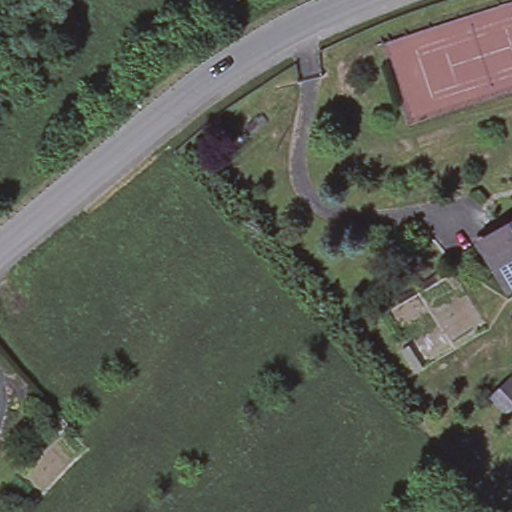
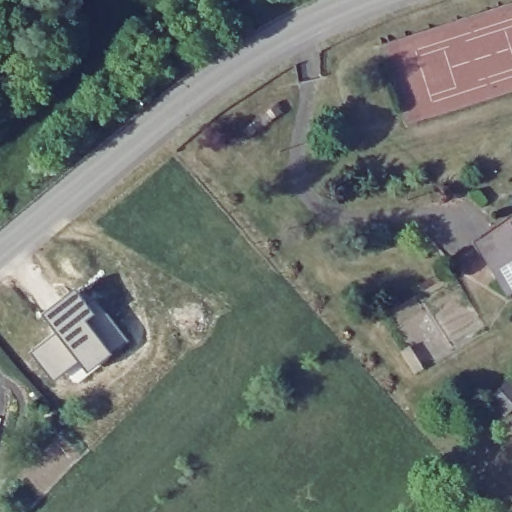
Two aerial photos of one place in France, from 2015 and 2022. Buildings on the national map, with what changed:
unchanged [(512,292),(504,297),(478,253),(512,233),(512,292)]
new [(55,332),(43,315),(66,297),(76,310),(92,298),(124,339),(85,370),(78,358),(54,377),(33,349),(55,332)]
unchanged [(512,382),(512,407),(506,412),(492,398),(511,380),(512,382)]

